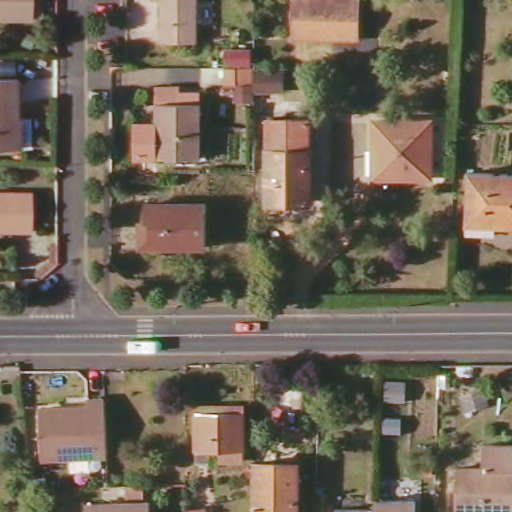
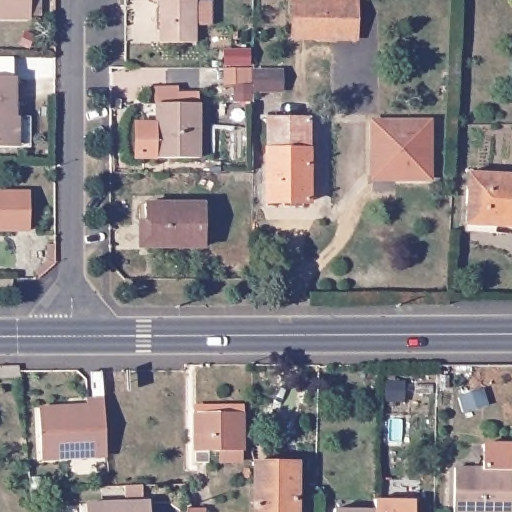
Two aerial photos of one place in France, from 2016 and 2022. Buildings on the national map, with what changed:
unchanged [(27,18),(27,21),(0,21),(0,0),(37,0),(37,18),(27,18)]
unchanged [(157,0),(193,0),(192,42),(157,42),(157,0)]
unchanged [(292,39),(294,0),(323,1),(322,39),(292,39)]
unchanged [(323,1),(355,1),(355,40),(322,39),(323,1)]
unchanged [(222,50),(249,49),(249,64),(222,64),(222,50)]
unchanged [(254,74),(278,74),(278,95),(254,95),(254,74)]
unchanged [(12,99),(17,99),(17,100),(17,144),(0,144),(0,76),(12,76),(12,99)]
unchanged [(192,159),(151,158),(151,103),(151,90),(174,90),(174,103),(193,103),(192,159)]
unchanged [(267,120),(307,121),(306,202),(265,203),(267,120)]
unchanged [(374,151),(374,122),(430,123),(429,181),(394,180),(373,179),(374,151)]
unchanged [(464,176),(512,180),(512,232),(489,231),(489,220),(462,217),(464,176)]
unchanged [(26,230),(0,230),(0,193),(26,193),(26,230)]
unchanged [(142,205),(202,206),(201,247),(147,247),(146,223),(142,223),(142,205)]
unchanged [(37,409),(84,407),(84,402),(101,401),(104,456),(39,460),(37,409)]
unchanged [(195,411),(242,411),(242,448),(195,447),(195,411)]
unchanged [(477,470),(477,446),(509,447),(510,512),(451,512),(451,470),(477,470)]
unchanged [(296,465),(295,512),(252,512),(252,464),(296,465)]
unchanged [(123,482),(140,481),(140,493),(123,493),(123,482)]
unchanged [(366,498),(406,498),(406,512),(366,512),(366,508),(366,498)]
unchanged [(147,500),(148,512),(86,512),(86,502),(147,500)]
unchanged [(366,508),(366,512),(327,512),(327,508),(366,508)]
unchanged [(204,511),(204,512),(186,512),(186,511),(204,511)]

